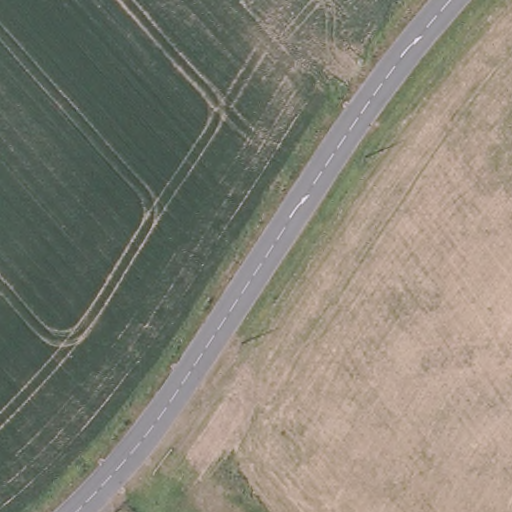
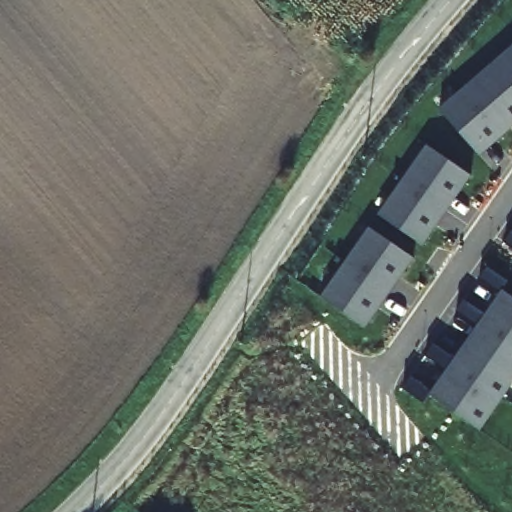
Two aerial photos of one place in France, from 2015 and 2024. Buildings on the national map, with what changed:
new [(497,75),(512,61),(512,128),(496,142),(490,136),(475,149),(440,109),(489,66),(497,75)]
new [(423,245),(378,214),(427,144),(471,176),(458,195),(450,190),(429,220),(437,225),(423,245)]
new [(366,327),(321,297),(370,227),(414,257),(400,277),(393,272),(372,302),(380,307),(366,327)]
new [(446,387),(469,353),(461,349),(503,289),(512,296),(512,385),(492,413),(483,407),(472,423),(430,395),(439,382),(446,387)]

